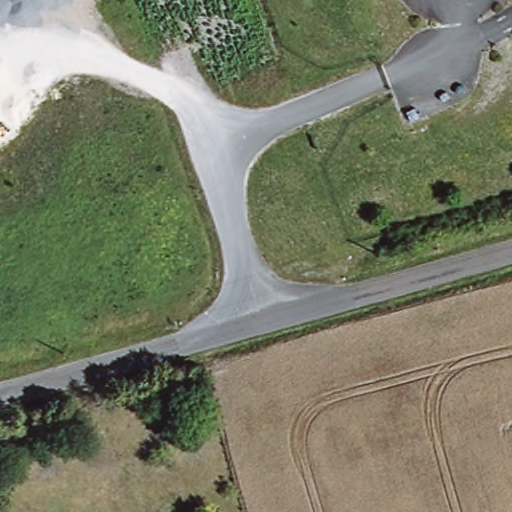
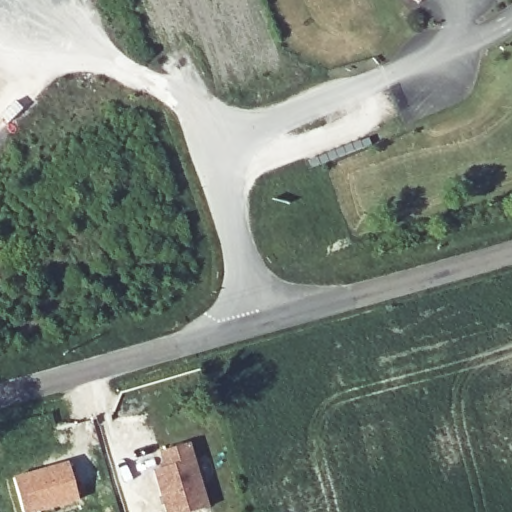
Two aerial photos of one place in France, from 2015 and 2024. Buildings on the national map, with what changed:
new [(165,464),(161,449),(190,441),(207,506),(185,512),(167,512),(154,468),(165,464)]
new [(67,464),(78,499),(37,512),(23,512),(12,480),(67,464)]

